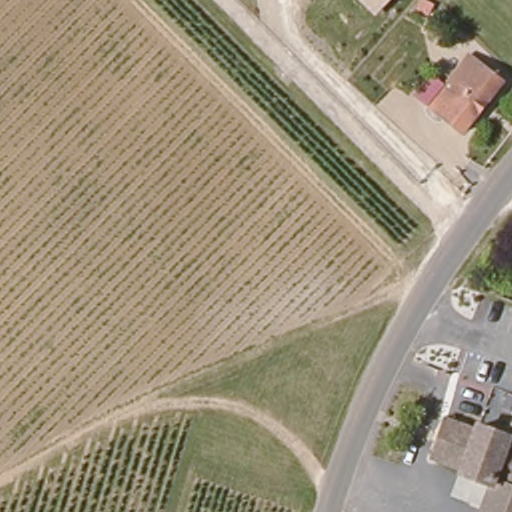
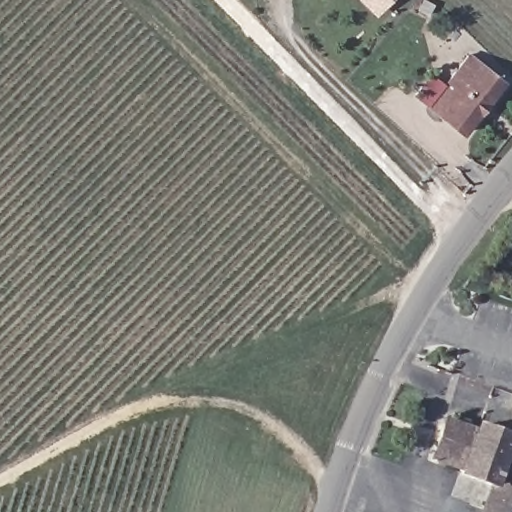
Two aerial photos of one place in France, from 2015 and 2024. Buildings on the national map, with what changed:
unchanged [(358,0),(389,0),(374,16),(358,0)]
unchanged [(506,91),(467,139),(435,106),(473,61),(506,91)]
unchanged [(475,422),(506,434),(512,436),(512,441),(509,448),(512,448),(512,485),(496,480),(494,486),(488,484),(457,474),(460,466),(428,455),(441,417),(472,429),(475,422)]
unchanged [(512,436),(506,434),(512,419),(512,436)]
unchanged [(512,441),(512,448),(509,448),(512,441)]
unchanged [(494,486),(496,480),(512,485),(512,512),(479,512),(485,494),(488,484),(494,486)]

